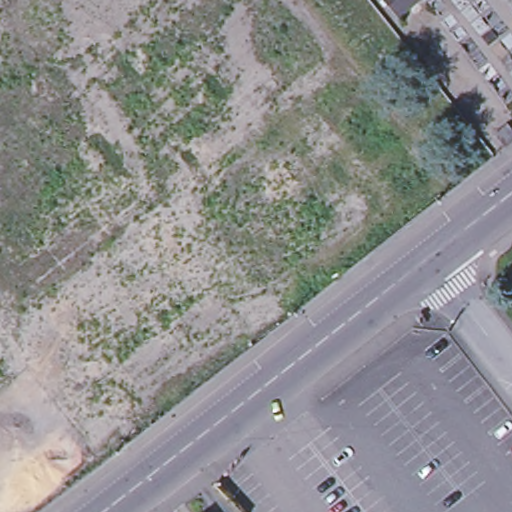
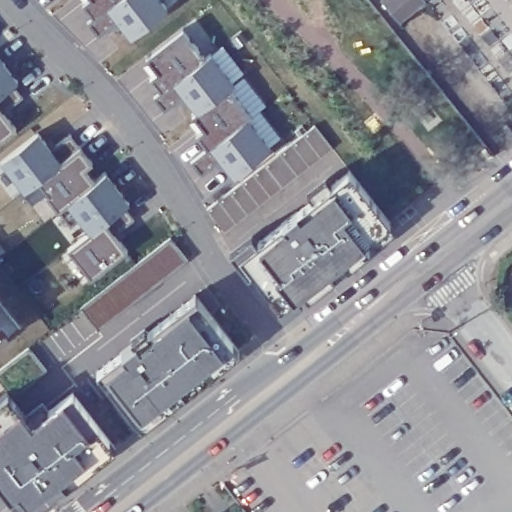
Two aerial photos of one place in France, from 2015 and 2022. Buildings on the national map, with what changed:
new [(82,4),(87,0),(119,0),(94,19),(82,4)]
new [(131,37),(118,21),(98,36),(87,23),(94,19),(119,0),(160,0),(168,10),(131,37)]
unchanged [(383,0),(420,0),(398,19),(383,0)]
new [(206,59),(161,93),(149,79),(157,72),(146,57),(183,29),(206,59)]
new [(211,55),(234,84),(197,112),(197,111),(192,115),(180,100),(164,112),(154,99),(206,59),(205,59),(211,55)]
new [(4,65),(0,69),(0,60),(4,65)]
new [(23,98),(4,112),(15,128),(0,140),(0,69),(23,98)]
new [(252,116),(207,150),(196,135),(204,130),(192,115),(197,111),(197,112),(229,87),(252,116)]
new [(271,149),(234,177),(221,160),(201,176),(191,162),(248,119),(248,120),(271,149)]
new [(332,150),(226,232),(208,209),(313,126),(332,150)]
unchanged [(507,131),(512,137),(512,145),(508,149),(499,138),(507,131)]
new [(36,134),(50,150),(69,136),(93,164),(85,170),(95,181),(105,173),(115,185),(111,189),(134,220),(114,235),(126,251),(91,279),(67,249),(88,231),(79,220),(70,226),(36,182),(24,191),(1,161),(36,134)]
new [(390,225),(364,245),(368,251),(349,265),(344,258),(328,271),(333,278),(293,309),(279,291),(271,297),(263,288),(260,291),(237,260),(350,170),(390,225)]
new [(196,294),(239,348),(142,428),(100,372),(196,294)]
new [(20,328),(0,344),(0,300),(20,328)]
new [(11,392),(34,425),(75,392),(119,448),(33,512),(23,512),(0,481),(0,399),(11,392)]

